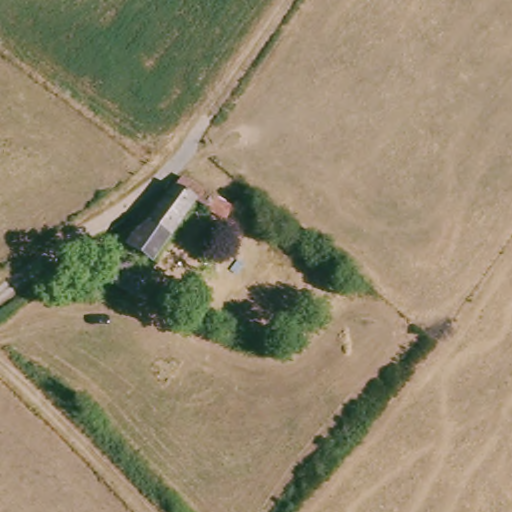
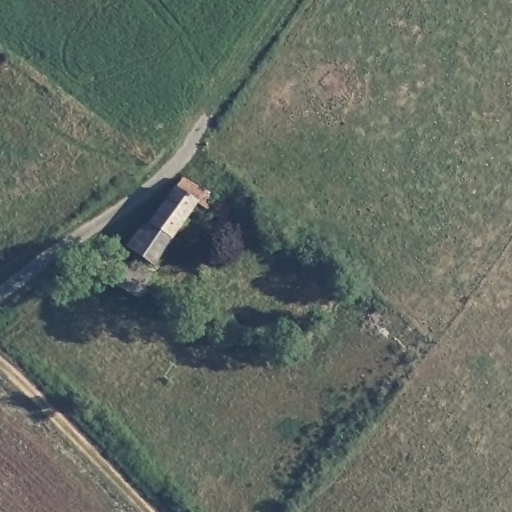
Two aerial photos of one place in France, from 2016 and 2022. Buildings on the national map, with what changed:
unchanged [(157,272),(135,252),(142,236),(156,228),(187,183),(210,196),(157,272)]
unchanged [(105,258),(128,269),(116,289),(90,279),(105,258)]

